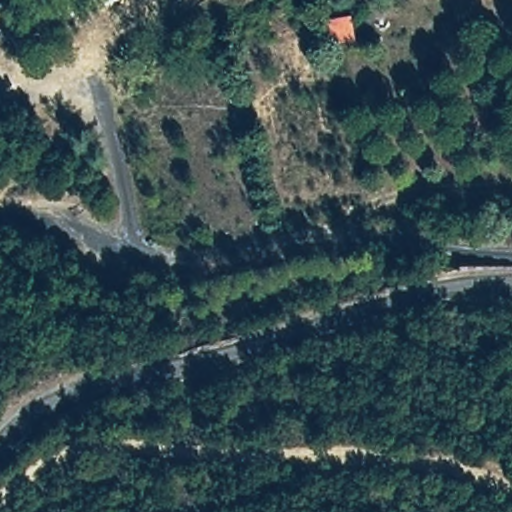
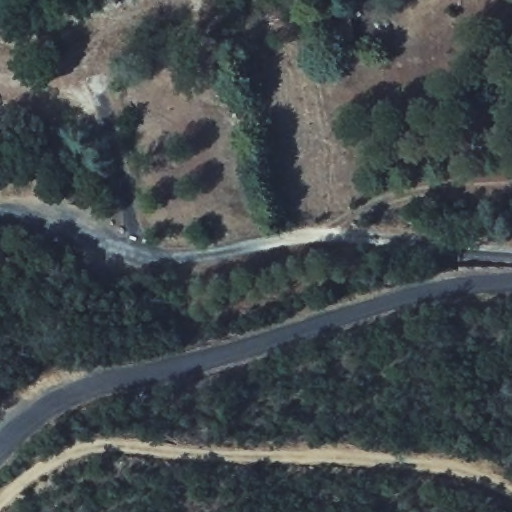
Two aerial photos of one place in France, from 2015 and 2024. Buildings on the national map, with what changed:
unchanged [(355,7),(362,34),(330,40),(325,12),(355,7)]

